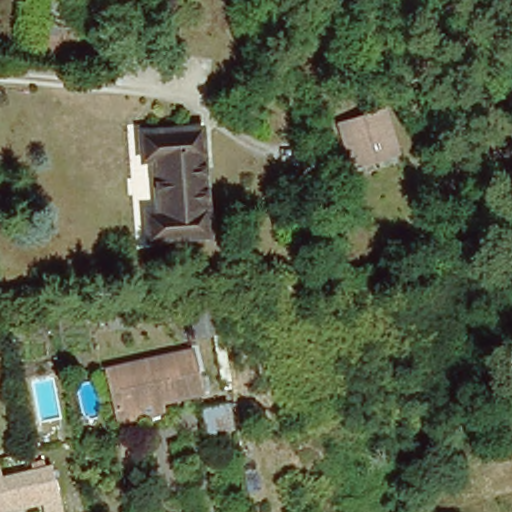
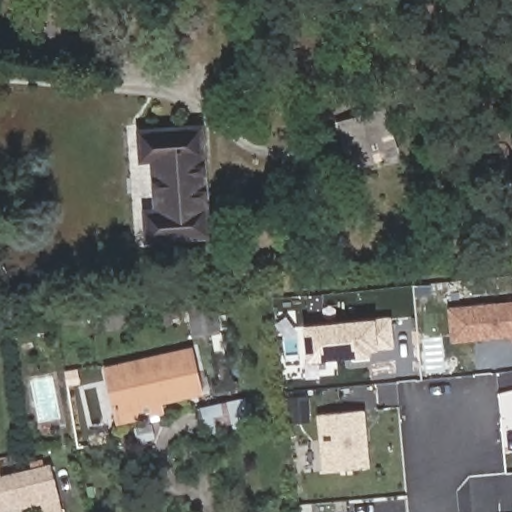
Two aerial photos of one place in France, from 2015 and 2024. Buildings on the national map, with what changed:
unchanged [(73,22),(87,23),(86,37),(72,36),(70,57),(43,54),(47,0),(75,0),(73,22)]
unchanged [(382,113),(393,154),(350,166),(338,125),(382,113)]
unchanged [(148,236),(146,208),(156,207),(153,156),(142,156),(140,128),(200,124),(208,231),(148,236)]
new [(451,342),(448,308),(512,301),(512,341),(511,341),(511,336),(451,342)]
unchanged [(133,325),(108,330),(106,317),(131,312),(133,325)]
new [(387,315),(391,346),(369,348),(368,354),(302,359),(300,322),(387,315)]
unchanged [(1,346),(0,346),(0,336),(1,346)]
unchanged [(189,347),(197,388),(156,397),(158,407),(118,416),(106,366),(189,347)]
new [(305,396),(306,420),(288,421),(286,396),(305,396)]
unchanged [(226,399),(232,426),(206,431),(201,405),(226,399)]
new [(363,409),(366,466),(317,470),(315,413),(363,409)]
unchanged [(49,465),(57,498),(5,512),(0,512),(0,477),(49,465)]

